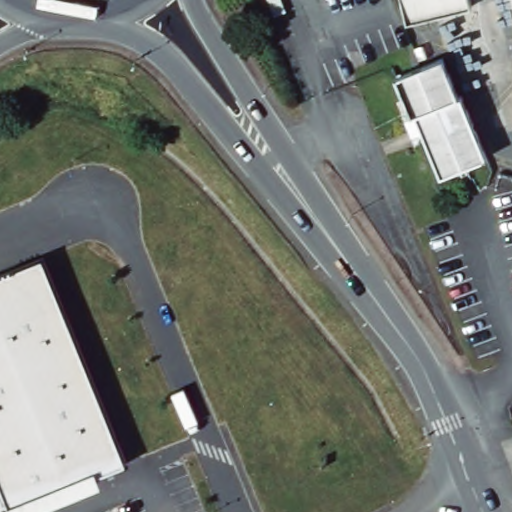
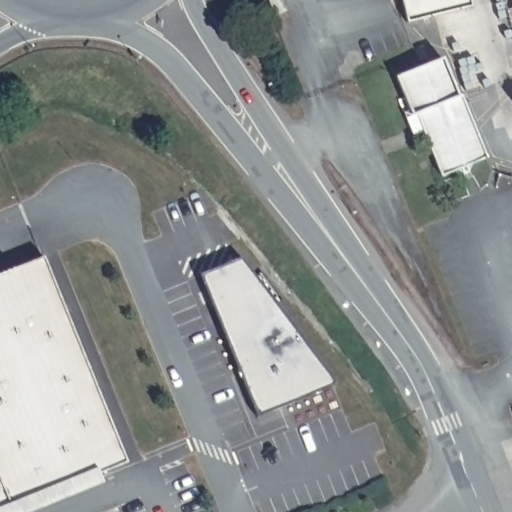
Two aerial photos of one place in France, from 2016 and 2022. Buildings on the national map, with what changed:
unchanged [(396,0),(470,0),(472,9),(403,26),(396,0)]
unchanged [(443,56),(448,70),(459,166),(439,175),(433,161),(443,156),(408,69),(443,56)]
unchanged [(409,108),(396,74),(408,69),(443,156),(433,161),(424,139),(414,143),(401,111),(409,108)]
unchanged [(459,99),(464,96),(486,158),(474,162),(475,166),(460,172),(459,166),(448,70),(459,99)]
unchanged [(44,257),(125,461),(98,472),(102,482),(27,512),(0,512),(0,274),(44,257)]
new [(241,258),(338,386),(268,438),(204,286),(241,258)]

